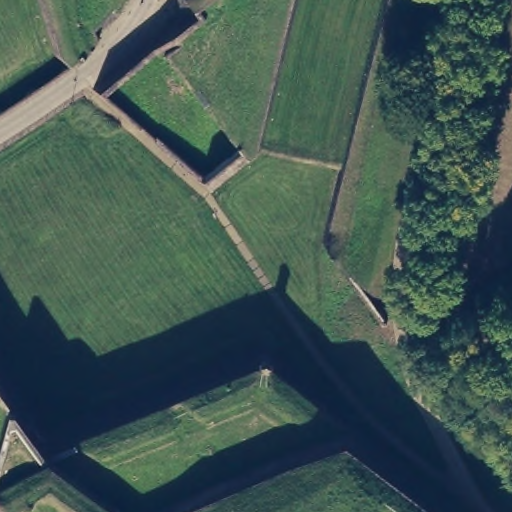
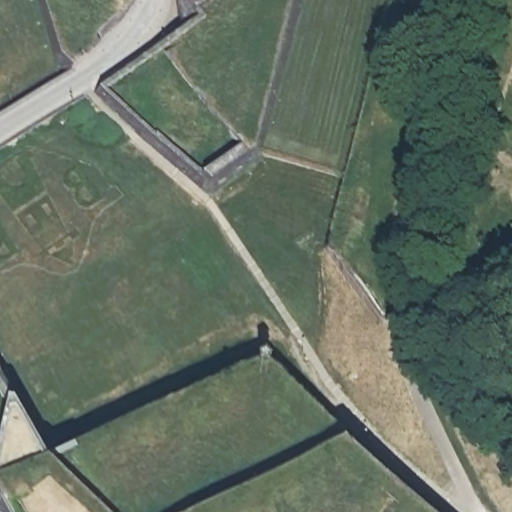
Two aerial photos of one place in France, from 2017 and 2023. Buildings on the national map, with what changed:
unchanged [(509,272),(501,246),(512,242),(512,271),(509,272)]

